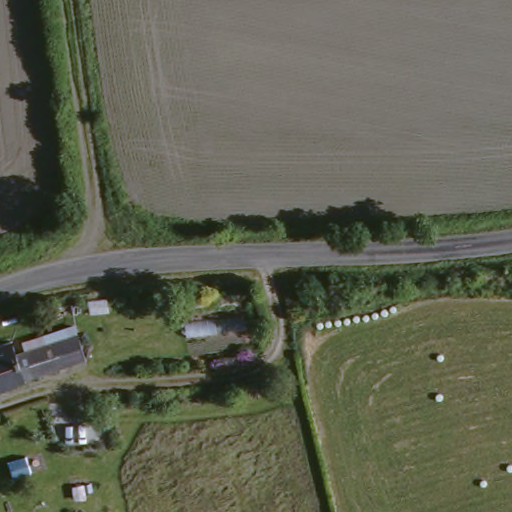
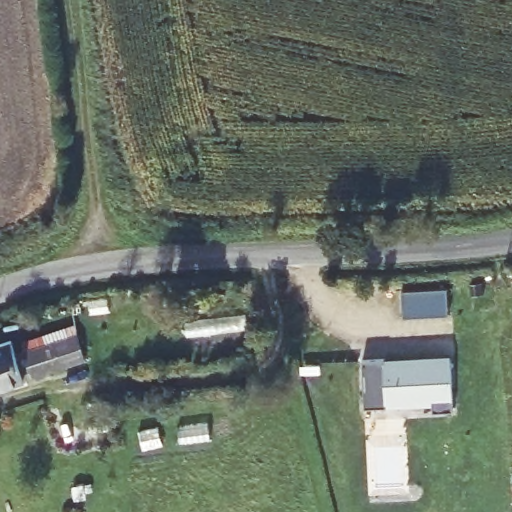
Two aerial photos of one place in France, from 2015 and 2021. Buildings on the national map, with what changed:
new [(447,288),(448,315),(403,317),(401,290),(447,288)]
unchanged [(23,349),(72,334),(83,360),(35,375),(23,349)]
unchanged [(6,345),(17,383),(0,388),(0,347),(6,345)]
new [(387,361),(388,366),(454,363),(456,415),(436,415),(435,403),(389,405),(390,410),(367,411),(365,362),(387,361)]

